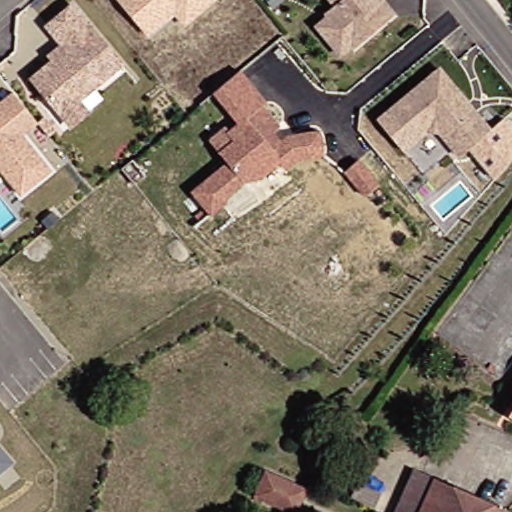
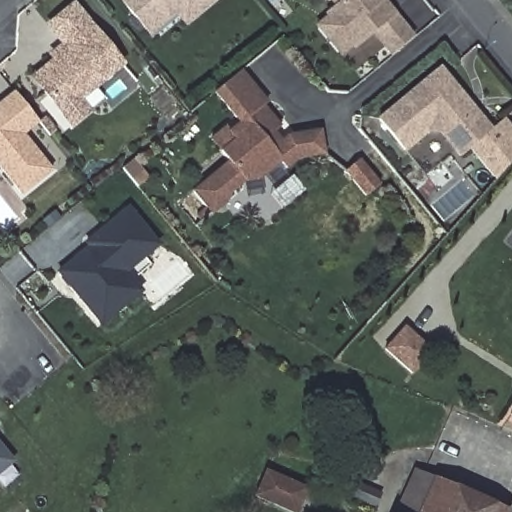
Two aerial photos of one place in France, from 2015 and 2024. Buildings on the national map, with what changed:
unchanged [(151,36),(123,0),(194,0),(151,36)]
unchanged [(318,28),(330,19),(327,15),(336,7),(331,0),(388,0),(384,3),(396,17),(356,50),(353,47),(341,56),(318,28)]
unchanged [(71,122),(61,111),(32,76),(52,59),(48,54),(63,42),(47,23),(72,3),(120,61),(77,97),(87,109),(71,122)]
unchanged [(440,66),(468,100),(477,110),(492,128),(461,154),(441,130),(428,127),(403,147),(378,117),(440,66)]
unchanged [(236,122),(211,91),(235,71),(240,67),(266,98),(263,102),(262,101),(236,122)]
unchanged [(21,192),(0,165),(0,100),(13,90),(21,100),(37,120),(22,132),(51,168),(21,192)]
unchanged [(228,158),(220,148),(208,133),(222,121),(228,129),(236,122),(262,101),(263,102),(280,122),(273,128),(281,138),(288,132),(320,128),(323,151),(297,154),(286,164),(280,157),(259,174),(243,178),(227,191),(224,198),(211,210),(192,188),(228,158)]
new [(467,149),(492,128),(504,119),(512,128),(512,162),(494,182),(467,149)]
unchanged [(346,173),(359,162),(379,186),(366,198),(346,173)]
new [(102,323),(93,312),(60,271),(90,246),(87,242),(102,230),(129,207),(159,244),(126,271),(142,290),(102,323)]
new [(407,326),(436,351),(413,377),(384,352),(407,326)]
unchanged [(512,368),(512,389),(502,384),(512,368)]
unchanged [(512,396),(512,424),(500,417),(512,396)]
unchanged [(14,464),(0,475),(0,446),(14,464)]
unchanged [(284,512),(249,497),(260,472),(302,490),(293,512),(284,512)]
unchanged [(494,512),(387,512),(404,472),(494,512)]

